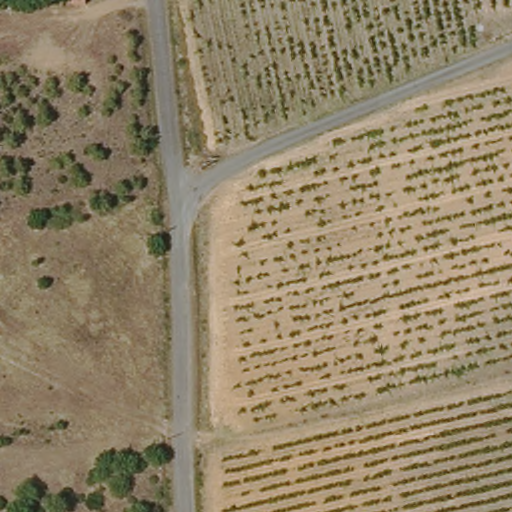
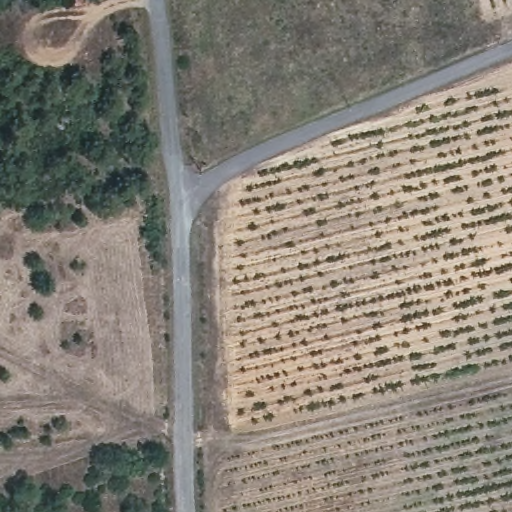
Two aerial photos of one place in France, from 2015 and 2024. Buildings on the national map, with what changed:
unchanged [(68,5),(68,0),(85,0),(85,6),(68,5)]

